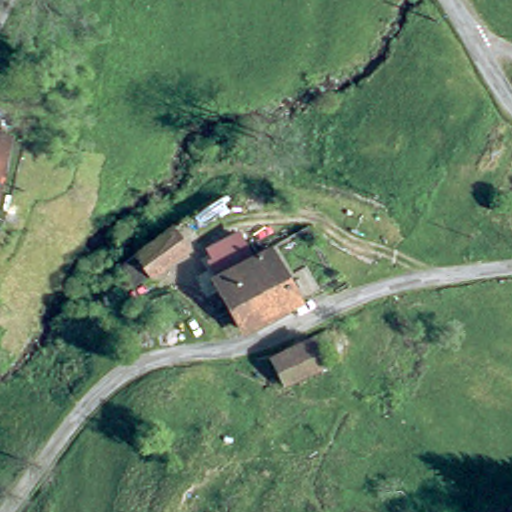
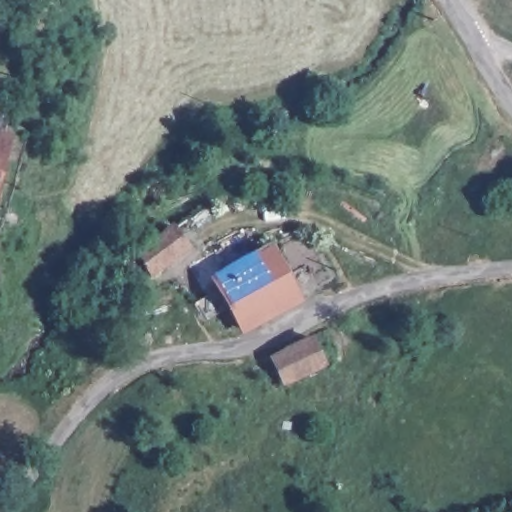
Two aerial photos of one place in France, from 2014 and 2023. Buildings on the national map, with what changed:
unchanged [(8,155),(0,185),(0,134),(13,139),(8,155)]
unchanged [(193,243),(140,283),(127,266),(179,226),(193,243)]
unchanged [(226,270),(263,248),(277,272),(296,302),(246,331),(243,329),(239,331),(209,280),(215,277),(226,270)]
unchanged [(309,336),(324,359),(286,385),(284,381),(280,375),(269,359),(286,350),(309,336)]

